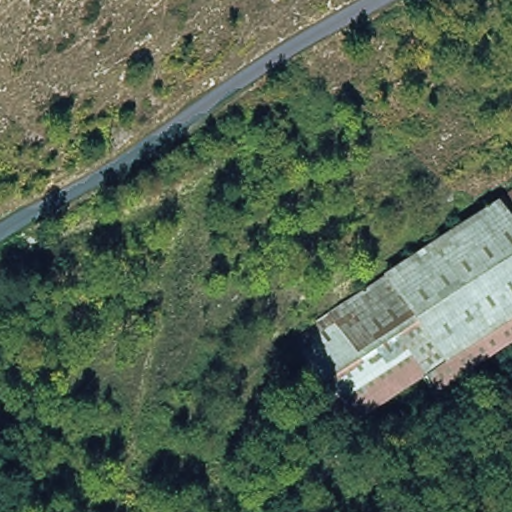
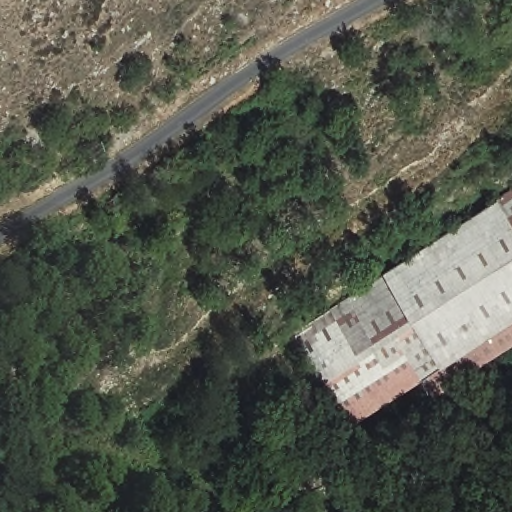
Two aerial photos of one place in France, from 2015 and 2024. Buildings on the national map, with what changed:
unchanged [(413,324),(314,390),(282,341),(377,275),(494,199),(512,187),(512,321),(439,369),(413,324)]
unchanged [(413,324),(439,369),(512,321),(512,346),(431,398),(420,385),(343,430),(314,390),(413,324)]

